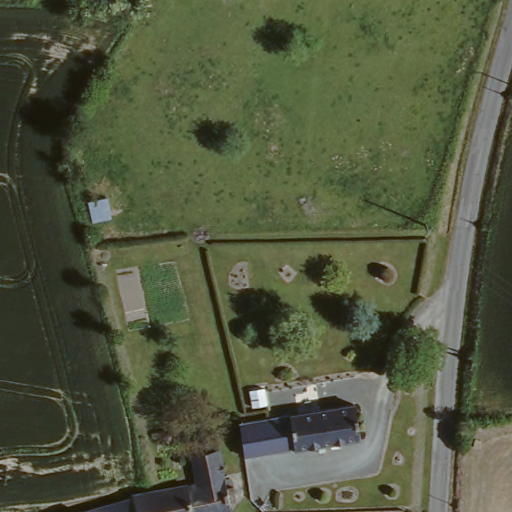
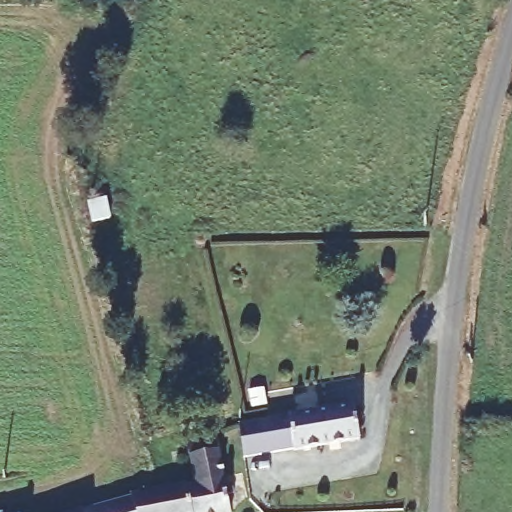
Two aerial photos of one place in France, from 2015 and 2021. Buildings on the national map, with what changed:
unchanged [(249,419),(356,401),(362,436),(297,447),(296,445),(248,453),(244,420),(249,419)]
unchanged [(186,434),(221,428),(236,508),(217,512),(197,512),(190,479),(195,478),(186,434)]
unchanged [(167,485),(190,479),(197,512),(140,512),(136,494),(135,491),(167,485)]
unchanged [(140,512),(103,512),(101,505),(136,494),(140,512)]
unchanged [(101,505),(103,512),(75,512),(96,505),(101,505)]
unchanged [(7,512),(0,512),(0,511),(6,510),(7,512)]

